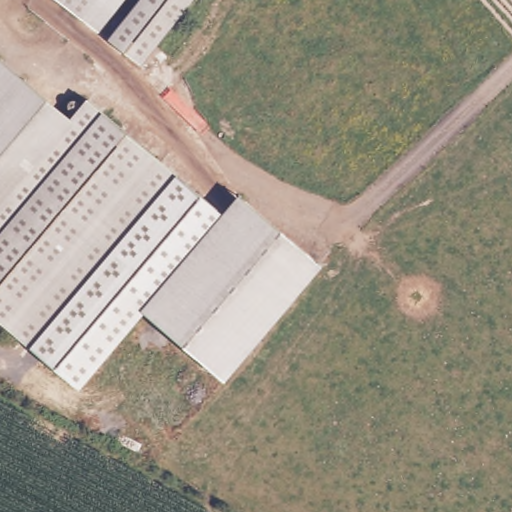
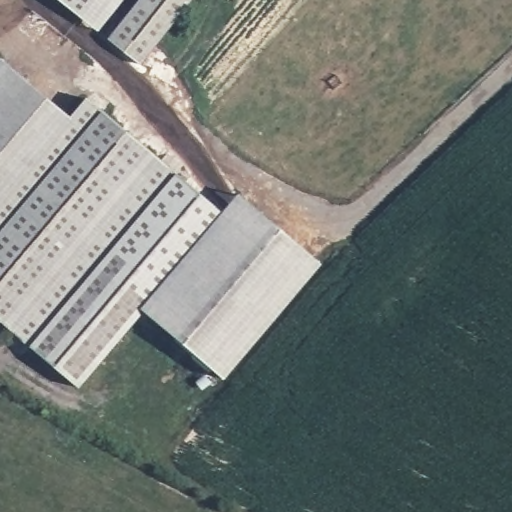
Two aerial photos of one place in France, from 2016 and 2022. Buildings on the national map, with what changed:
unchanged [(94,0),(96,1),(97,0),(124,0),(99,31),(59,0),(94,0)]
unchanged [(94,0),(97,0),(96,1),(94,0)]
unchanged [(114,39),(144,0),(193,0),(145,62),(114,39)]
unchanged [(139,309),(77,385),(0,321),(0,57),(70,117),(87,98),(222,212),(139,309)]
unchanged [(322,265),(225,381),(139,309),(236,194),(322,265)]

